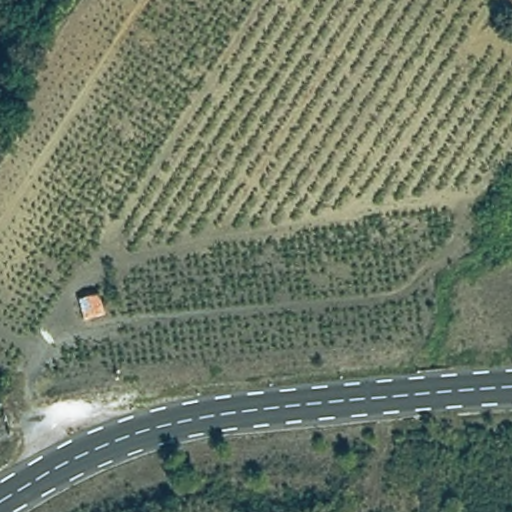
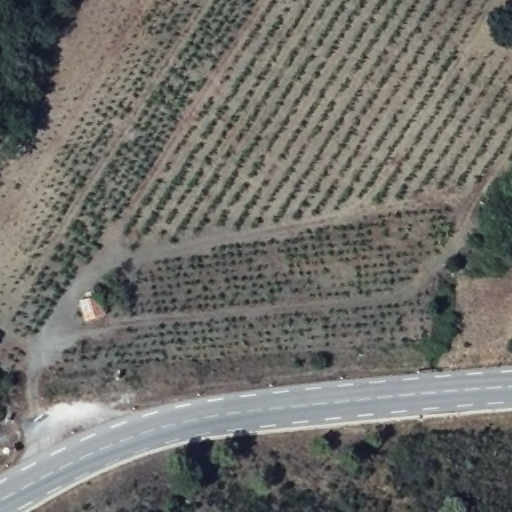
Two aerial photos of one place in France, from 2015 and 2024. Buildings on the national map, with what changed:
unchanged [(100,289),(108,309),(87,317),(81,296),(100,289)]

